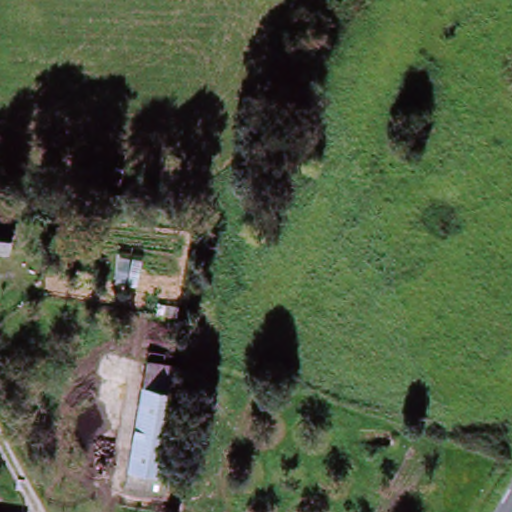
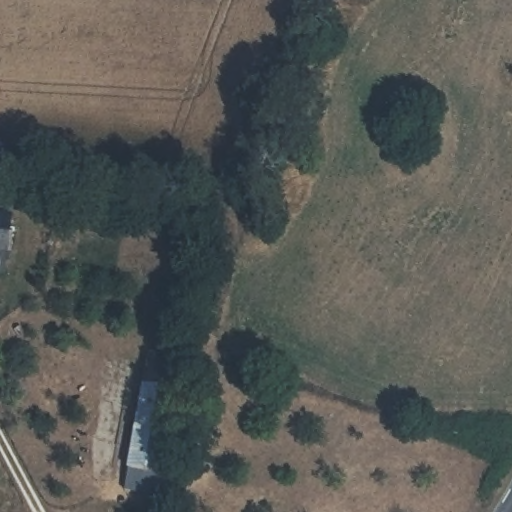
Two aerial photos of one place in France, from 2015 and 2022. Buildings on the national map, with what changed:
unchanged [(11,220),(8,255),(0,254),(0,218),(11,220)]
unchanged [(163,379),(171,380),(162,475),(127,472),(137,368),(138,359),(152,361),(151,370),(164,371),(163,379)]
unchanged [(172,477),(170,502),(125,497),(127,472),(162,475),(172,477)]

